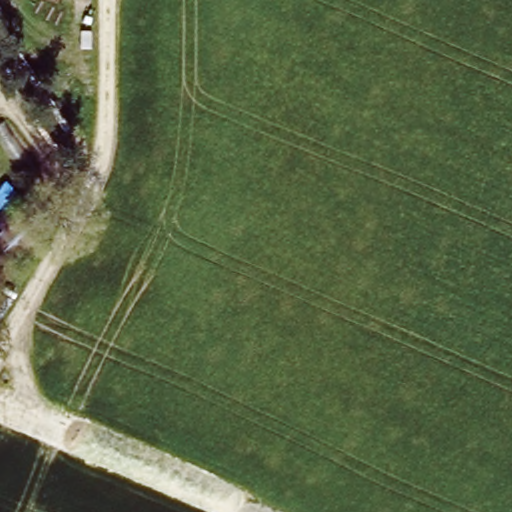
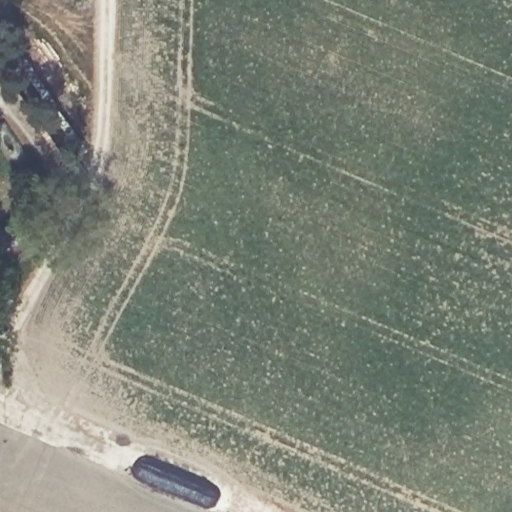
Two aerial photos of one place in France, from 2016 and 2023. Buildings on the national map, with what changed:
unchanged [(58,216),(11,259),(0,244),(0,219),(36,190),(58,216)]

